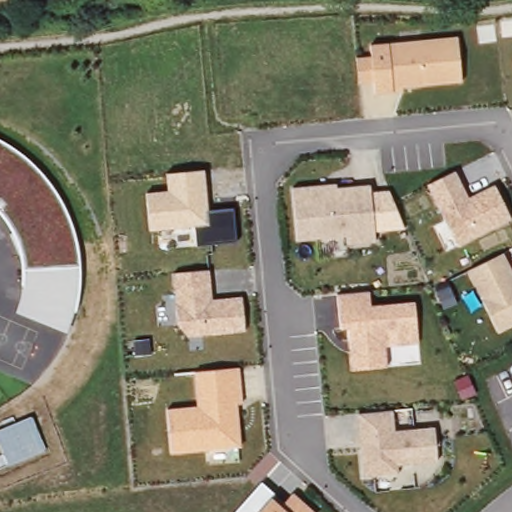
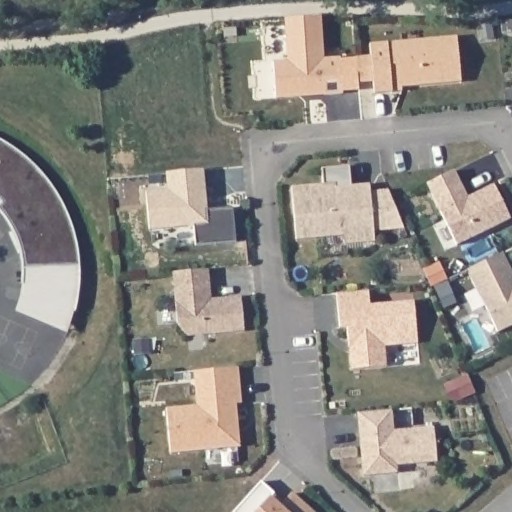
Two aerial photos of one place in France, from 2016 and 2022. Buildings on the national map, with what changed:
new [(323,15),(326,58),(342,57),(344,94),(277,98),(275,61),(288,60),(286,18),(323,15)]
unchanged [(375,82),(358,83),(355,57),(370,55),(370,43),(458,35),(463,83),(377,91),(375,82)]
unchanged [(27,270),(18,240),(5,216),(0,211),(0,140),(39,166),(63,195),(79,232),(83,270),(27,270)]
unchanged [(454,170),(470,198),(495,184),(512,215),(512,220),(459,249),(426,184),(454,170)]
unchanged [(148,194),(168,192),(167,175),(205,171),(208,212),(233,210),(237,243),(196,245),(194,227),(151,231),(148,194)]
unchanged [(289,187),(339,183),(339,189),(371,187),(377,242),(346,244),(345,236),(301,240),(289,187)]
new [(372,190),(391,189),(405,228),(376,230),(372,190)]
unchanged [(505,253),(512,266),(512,327),(501,333),(464,272),(505,253)]
unchanged [(175,324),(173,273),(209,269),(210,298),(242,295),(246,331),(187,337),(175,324)]
unchanged [(17,312),(23,296),(26,284),(27,270),(83,270),(81,295),(77,315),(68,332),(17,312)]
unchanged [(347,328),(338,329),(336,294),(371,291),(371,304),(414,301),(417,343),(387,345),(387,367),(352,370),(347,328)]
unchanged [(167,407),(196,404),(193,372),(239,368),(243,403),(237,404),(242,446),(171,454),(167,407)]
unchanged [(359,412),(392,410),(394,430),(436,427),(439,462),(399,465),(400,474),(364,476),(359,412)]
unchanged [(0,446),(0,430),(32,416),(46,450),(9,466),(0,446)]
unchanged [(284,501),(292,492),(315,512),(234,512),(261,481),(284,501)]

